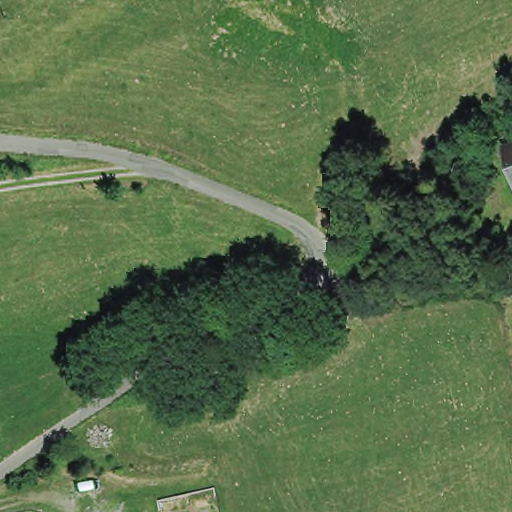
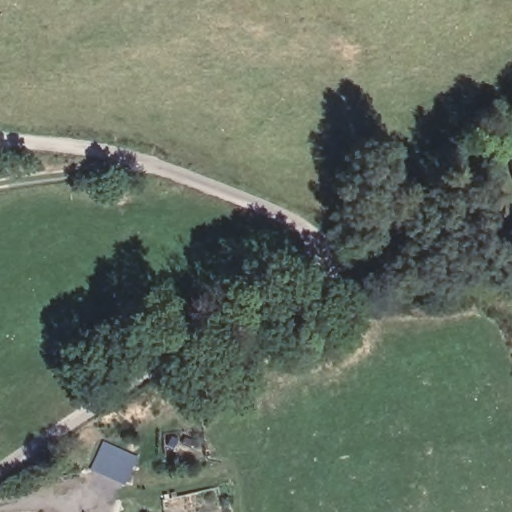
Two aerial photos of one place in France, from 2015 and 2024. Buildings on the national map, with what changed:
unchanged [(512,151),(512,190),(501,154),(512,151)]
new [(137,458),(124,488),(89,472),(102,443),(137,458)]

